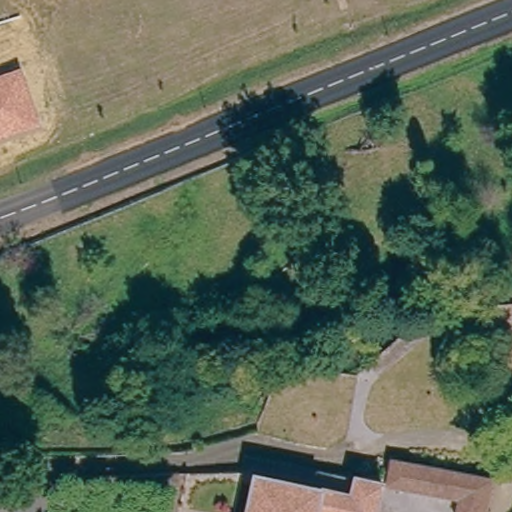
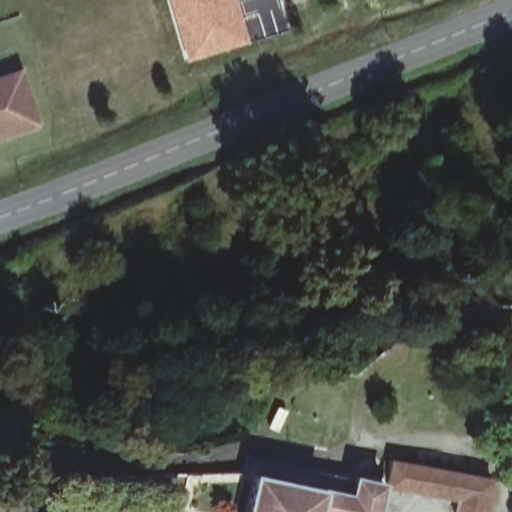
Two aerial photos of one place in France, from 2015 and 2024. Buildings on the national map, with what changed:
new [(251,44),(187,64),(168,0),(237,0),(243,21),(251,44)]
demolished [(377,15),(374,0),(385,0),(387,11),(377,15)]
unchanged [(0,137),(0,74),(20,67),(39,124),(0,137)]
unchanged [(485,512),(455,512),(457,498),(385,485),(390,458),(491,477),(485,512)]
unchanged [(253,472),(350,493),(354,475),(380,481),(373,512),(313,512),(245,512),(253,472)]

